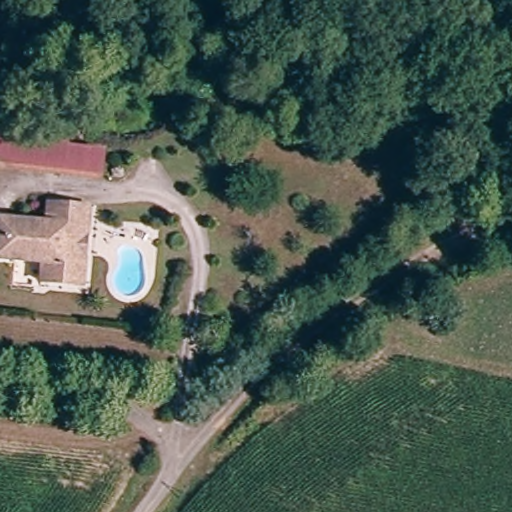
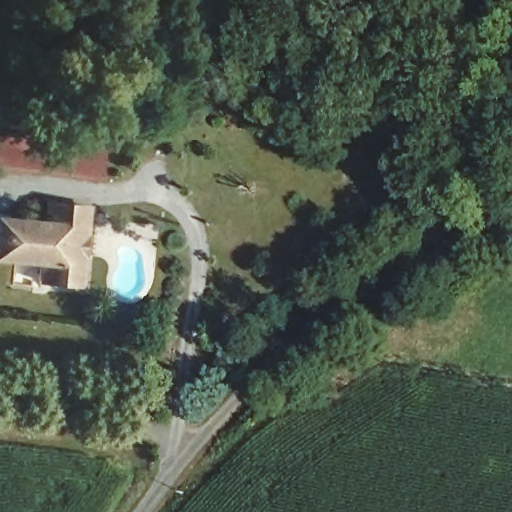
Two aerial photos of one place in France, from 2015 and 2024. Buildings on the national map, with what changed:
unchanged [(77,176),(0,168),(0,136),(66,141),(66,147),(98,151),(96,167),(95,177),(77,176)]
unchanged [(35,287),(37,264),(0,261),(0,223),(41,225),(44,202),(82,206),(81,228),(75,293),(35,287)]

